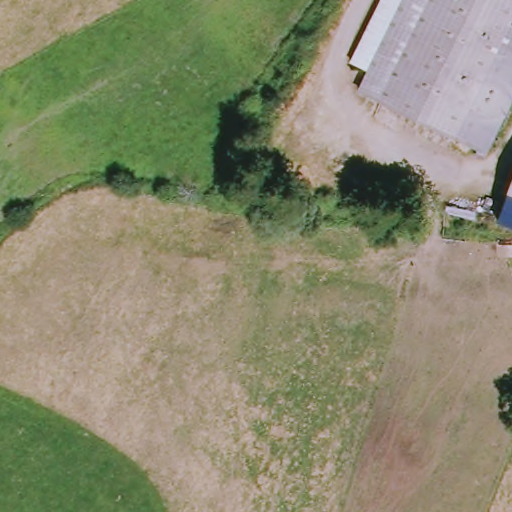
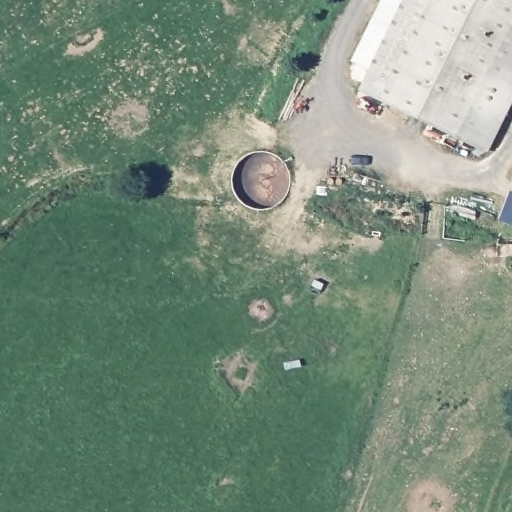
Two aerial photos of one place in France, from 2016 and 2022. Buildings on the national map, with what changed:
unchanged [(354,93),(364,70),(344,60),(374,0),(512,0),(512,91),(485,152),(354,93)]
unchanged [(490,219),(512,159),(512,228),(490,219)]

